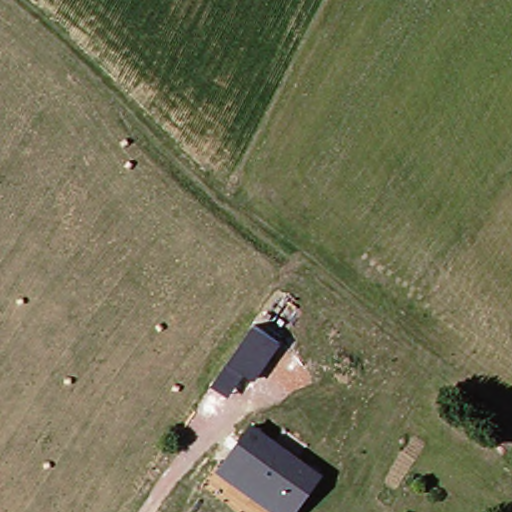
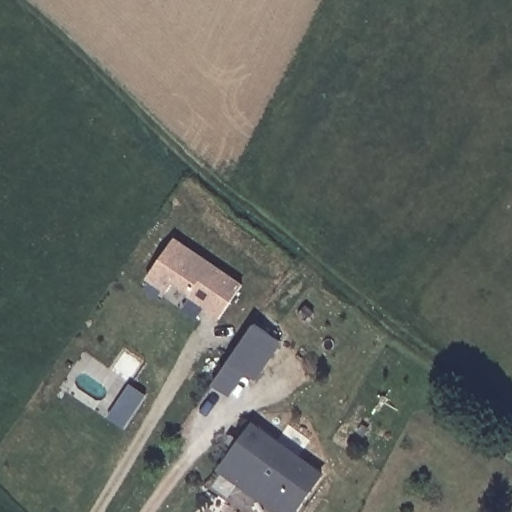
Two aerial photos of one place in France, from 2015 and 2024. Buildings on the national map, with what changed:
new [(176,237),(243,284),(219,320),(201,310),(205,306),(174,285),(166,293),(146,279),(176,237)]
unchanged [(210,380),(226,357),(253,318),(278,335),(252,374),(242,367),(226,390),(210,380)]
unchanged [(293,511),(224,464),(252,425),(321,471),(293,511)]

